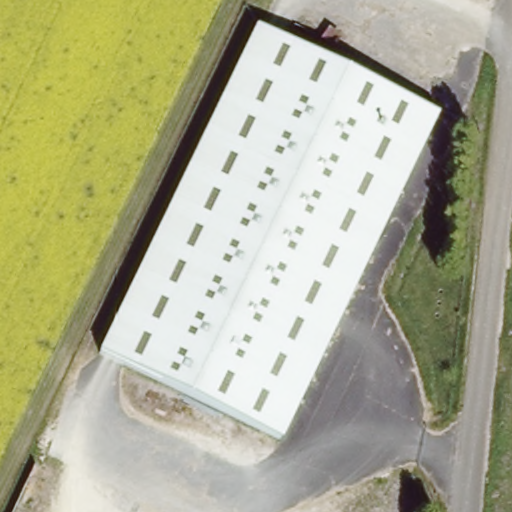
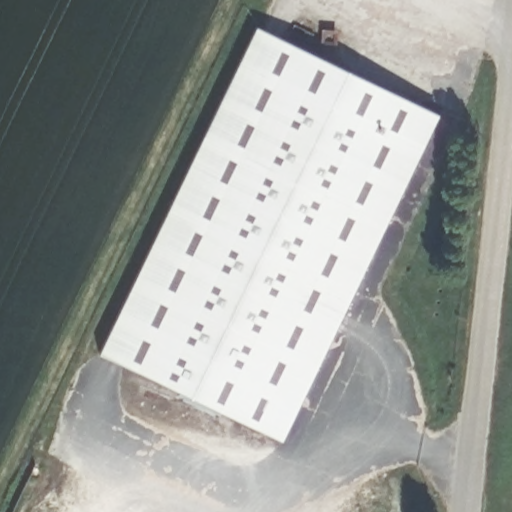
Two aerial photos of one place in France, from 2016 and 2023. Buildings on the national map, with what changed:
unchanged [(440,118),(282,444),(109,360),(267,34),(440,118)]

